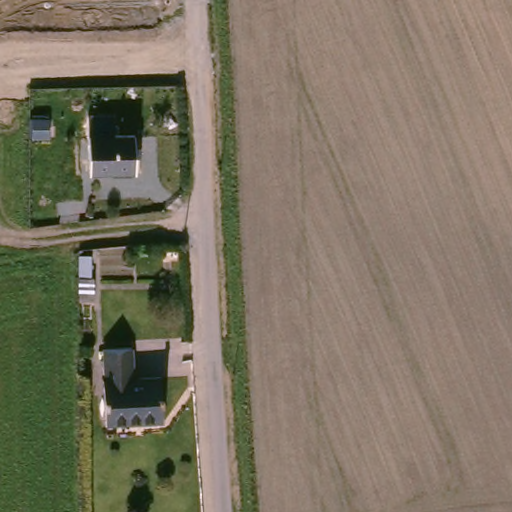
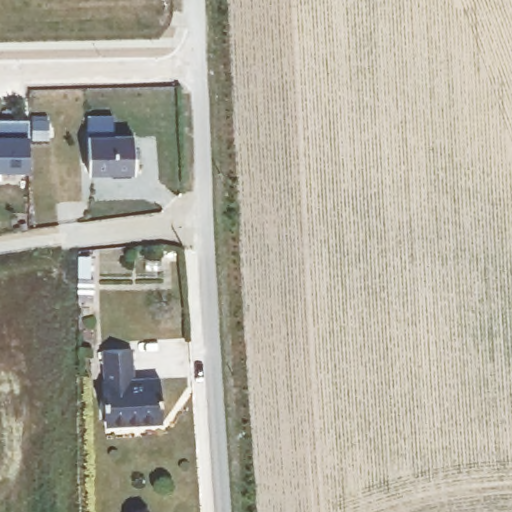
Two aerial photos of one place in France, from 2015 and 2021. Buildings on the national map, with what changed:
unchanged [(53,137),(38,137),(38,118),(53,118),(53,137)]
new [(26,170),(0,170),(0,121),(28,121),(26,170)]
unchanged [(91,167),(89,132),(134,129),(139,163),(91,167)]
unchanged [(86,305),(84,257),(96,259),(95,282),(104,282),(104,309),(86,308),(86,305)]
unchanged [(104,373),(106,373),(106,338),(141,338),(141,373),(166,372),(166,420),(149,421),(149,415),(104,414),(104,373)]

